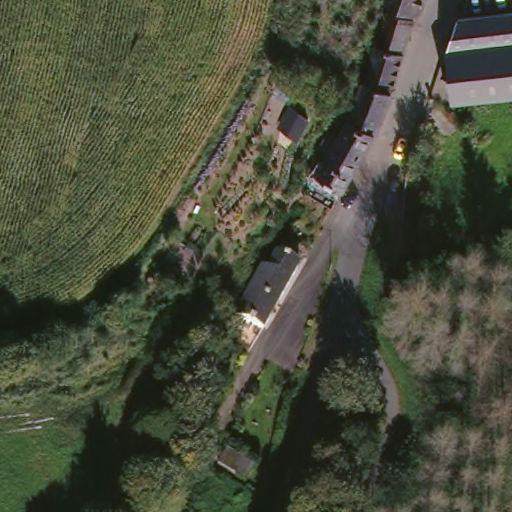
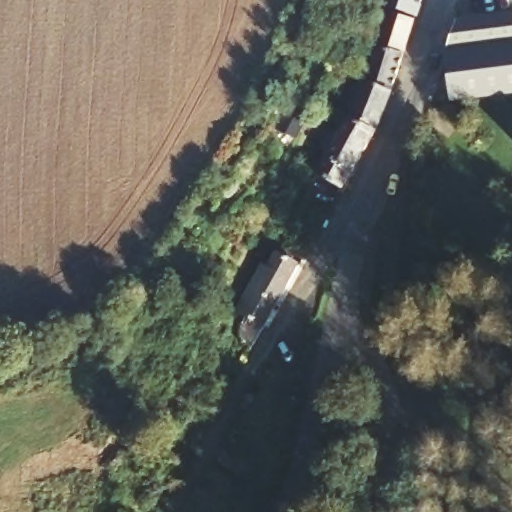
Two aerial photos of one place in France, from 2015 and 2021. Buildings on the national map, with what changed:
unchanged [(396,0),(434,0),(428,21),(394,11),(393,11),(396,0)]
unchanged [(357,85),(364,72),(366,69),(369,59),(382,63),(384,64),(388,53),(401,18),(426,25),(414,59),(402,98),(376,89),(369,86),(357,85)]
unchanged [(457,84),(466,82),(464,61),(454,27),(512,18),(512,99),(459,105),(457,84)]
unchanged [(316,63),(309,80),(299,76),(307,54),(318,58),(316,63)]
unchanged [(368,109),(373,96),(376,89),(402,98),(384,136),(359,128),(368,109)]
unchanged [(341,190),(326,182),(321,179),(325,173),(329,176),(348,147),(336,140),(342,129),(347,123),(382,142),(384,144),(349,196),(344,193),(341,190)]
unchanged [(263,272),(268,274),(276,257),(298,268),(287,288),(284,292),(265,329),(257,324),(249,320),(242,317),(263,272)]
unchanged [(261,477),(248,489),(225,464),(237,451),(261,477)]

